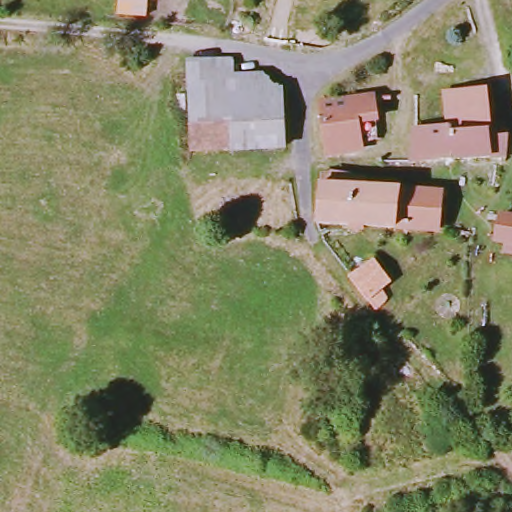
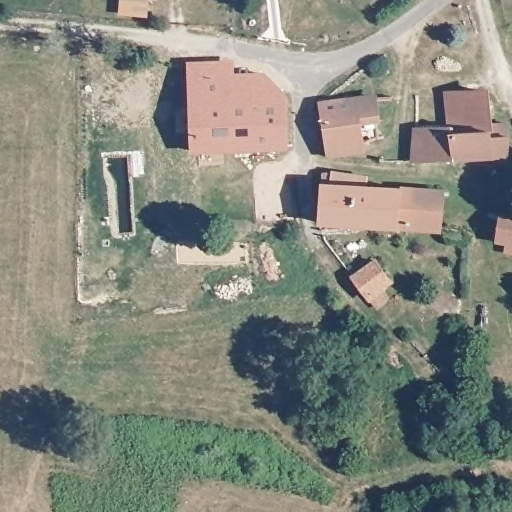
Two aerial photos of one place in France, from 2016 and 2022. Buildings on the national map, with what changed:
unchanged [(115,14),(115,0),(147,0),(145,16),(115,14)]
unchanged [(183,62),(225,63),(225,69),(260,71),(270,93),(282,94),(285,149),(185,149),(183,62)]
unchanged [(443,91),(487,89),(489,130),(453,133),(452,126),(445,126),(443,91)]
unchanged [(344,152),(321,154),(315,107),(319,104),(368,100),(367,120),(368,126),(370,147),(366,148),(344,152)]
unchanged [(490,134),(508,133),(509,155),(412,160),(414,140),(415,129),(452,126),(453,133),(489,130),(490,134)]
unchanged [(362,181),(366,189),(389,190),(387,232),(327,228),(315,227),(316,189),(327,187),(328,176),(362,181)]
unchanged [(404,191),(431,193),(430,234),(387,232),(389,190),(404,191)]
unchanged [(497,211),(512,214),(512,242),(494,238),(497,211)]
unchanged [(375,260),(389,282),(383,288),(388,299),(378,307),(351,275),(375,260)]

